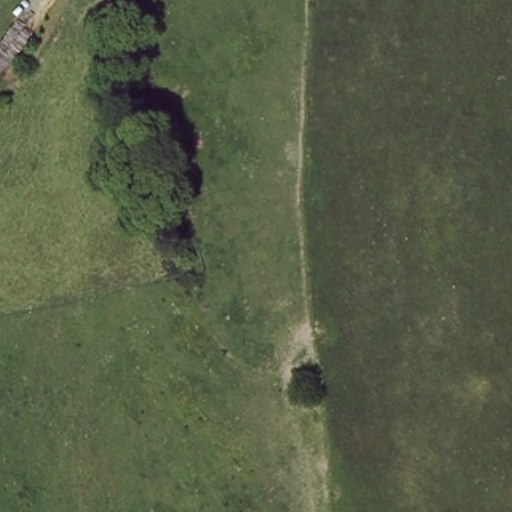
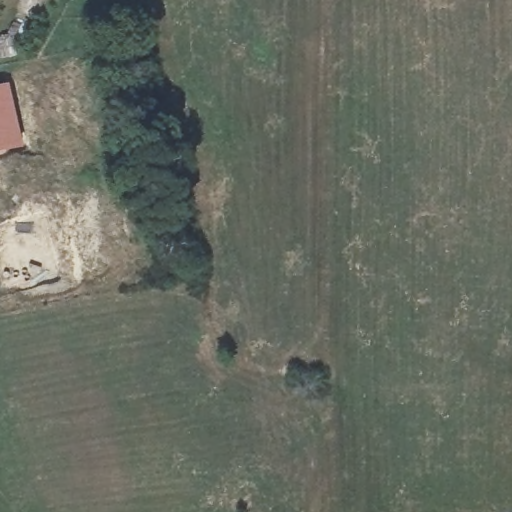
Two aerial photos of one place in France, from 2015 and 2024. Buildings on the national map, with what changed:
new [(10,80),(25,146),(0,152),(0,83),(10,80)]

